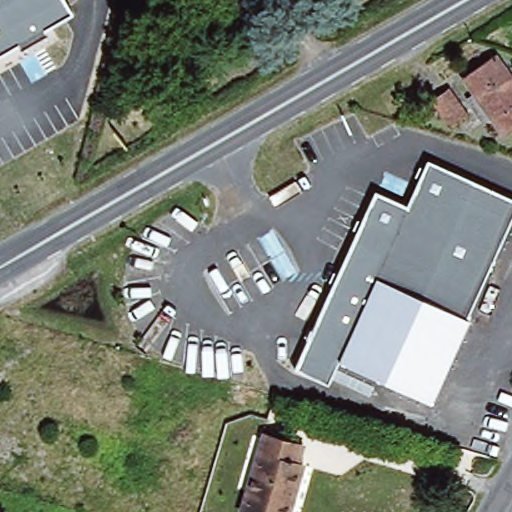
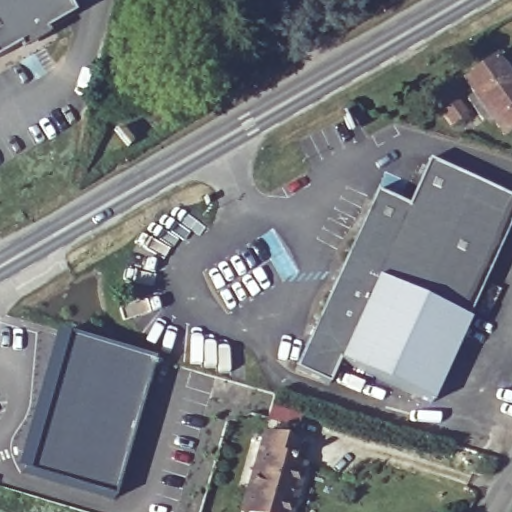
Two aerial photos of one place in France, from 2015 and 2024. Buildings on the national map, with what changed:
unchanged [(0,57),(0,0),(64,0),(74,16),(0,57)]
unchanged [(512,86),(512,126),(500,135),(462,82),(495,60),(512,86)]
unchanged [(468,113),(454,124),(436,99),(452,87),(468,113)]
unchanged [(328,386),(294,375),(378,194),(408,207),(430,160),(512,199),(512,224),(468,323),(376,280),(340,363),(328,386)]
unchanged [(340,363),(376,280),(468,323),(458,351),(468,355),(456,381),(447,377),(432,403),(340,363)]
new [(64,330),(155,356),(115,496),(24,470),(64,330)]
unchanged [(292,467),(297,468),(285,512),(248,512),(242,510),(265,434),(298,444),(292,467)]

